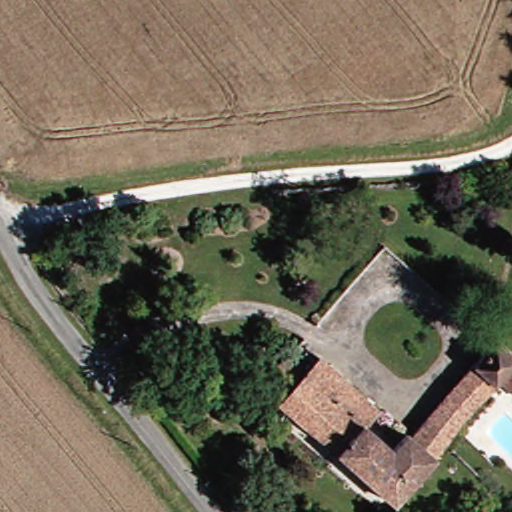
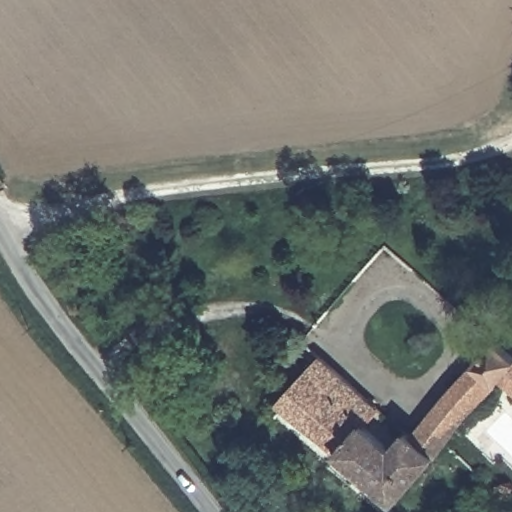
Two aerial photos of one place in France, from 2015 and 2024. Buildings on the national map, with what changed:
unchanged [(414,436),(494,341),(497,343),(512,357),(512,390),(503,383),(400,506),(280,405),(292,392),(285,386),(288,382),(275,372),(285,360),(305,376),(321,358),(367,397),(381,409),(369,423),(396,446),(408,431),(414,436)]

